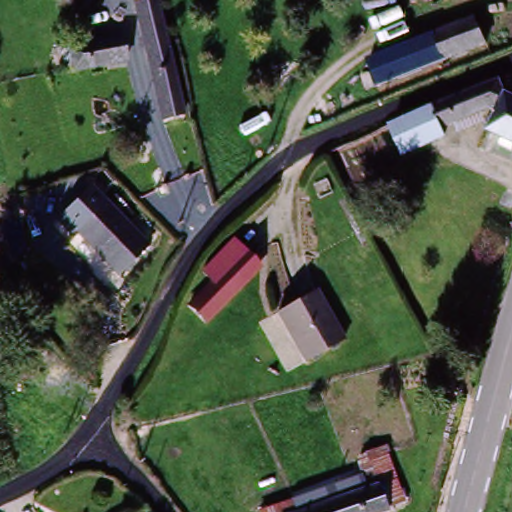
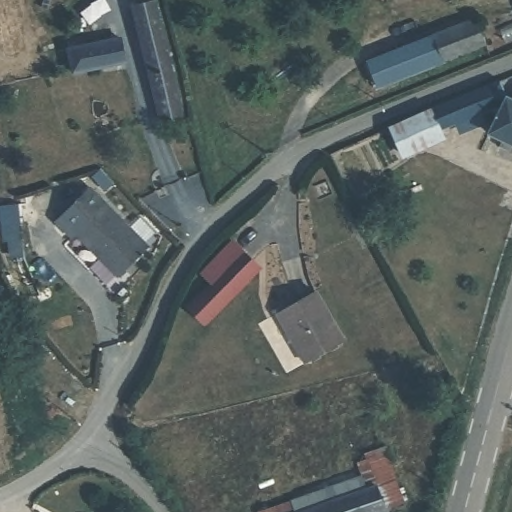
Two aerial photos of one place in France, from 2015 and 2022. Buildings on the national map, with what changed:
unchanged [(130,1),(133,0),(154,0),(180,113),(158,119),(130,1)]
unchanged [(421,68),(375,87),(366,65),(432,39),(431,35),(475,18),(486,46),(447,60),(421,68)]
unchanged [(129,66),(72,78),(66,50),(123,39),(129,66)]
unchanged [(501,100),(442,131),(445,139),(400,160),(387,126),(430,108),(496,83),(501,100)]
unchanged [(501,100),(503,97),(511,100),(512,98),(512,149),(486,135),(501,100)]
unchanged [(121,273),(73,235),(70,239),(57,226),(89,188),(103,200),(102,202),(147,241),(121,273)]
unchanged [(200,325),(183,306),(205,286),(195,274),(229,244),(240,256),(257,273),(200,325)]
unchanged [(280,317),(320,297),(341,346),(300,364),(280,317)]
unchanged [(385,450),(403,506),(388,512),(276,512),(275,509),(359,480),(352,456),(385,450)]

